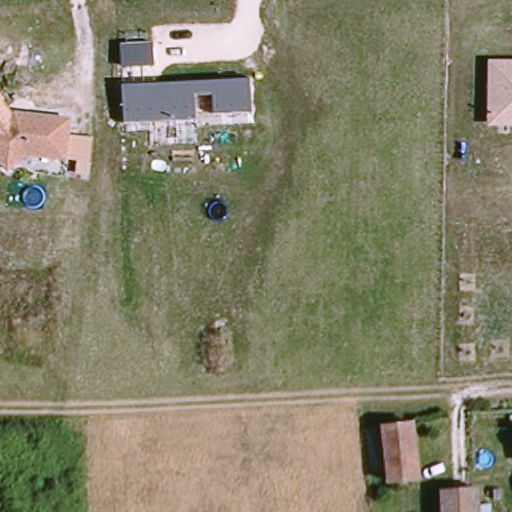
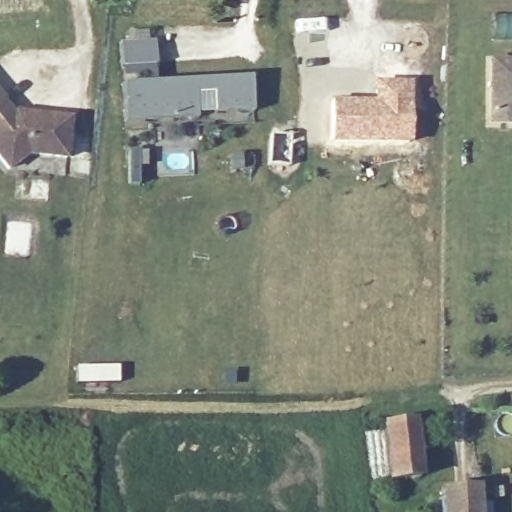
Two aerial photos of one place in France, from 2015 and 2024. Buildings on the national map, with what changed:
new [(325,20),(327,50),(314,51),(315,58),(296,59),(293,22),(325,20)]
unchanged [(119,40),(156,37),(156,65),(121,67),(119,40)]
unchanged [(488,58),(512,58),(512,125),(488,125),(488,58)]
unchanged [(123,82),(251,75),(252,110),(214,112),(213,93),(196,93),(198,116),(125,121),(123,82)]
new [(373,100),(373,84),(411,81),(412,143),(331,146),(329,100),(373,100)]
unchanged [(1,102),(11,112),(0,121),(0,93),(5,100),(1,102)]
unchanged [(71,117),(70,131),(94,135),(88,177),(75,175),(78,159),(67,157),(66,161),(26,156),(7,171),(0,162),(0,121),(15,110),(71,117)]
unchanged [(411,427),(416,479),(389,482),(384,430),(411,427)]
unchanged [(471,512),(439,512),(439,494),(470,492),(471,512)]

